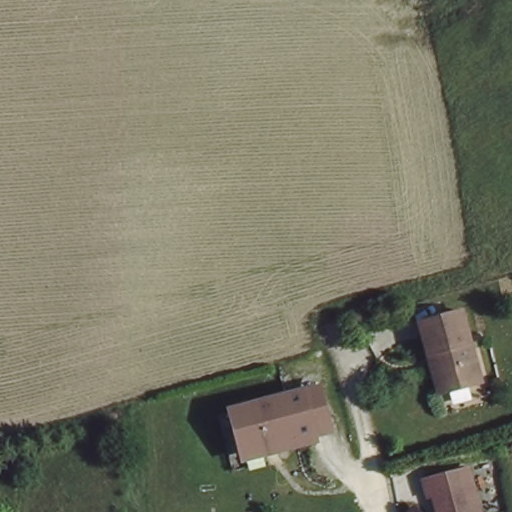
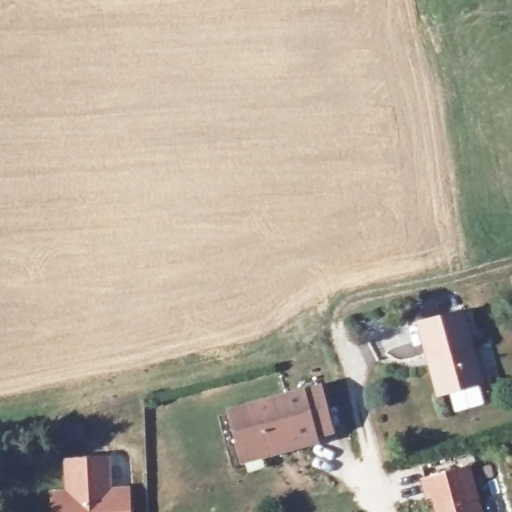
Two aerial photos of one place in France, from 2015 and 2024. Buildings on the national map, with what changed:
unchanged [(483,382),(449,392),(436,352),(430,353),(423,323),(464,311),(483,382)]
unchanged [(236,411),(304,395),(320,391),(330,433),(315,437),(246,453),(236,411)]
new [(111,487),(129,487),(130,512),(51,512),(50,491),(65,491),(64,459),(109,456),(111,487)]
unchanged [(479,512),(435,512),(436,512),(432,496),(427,496),(423,481),(468,469),(479,512)]

